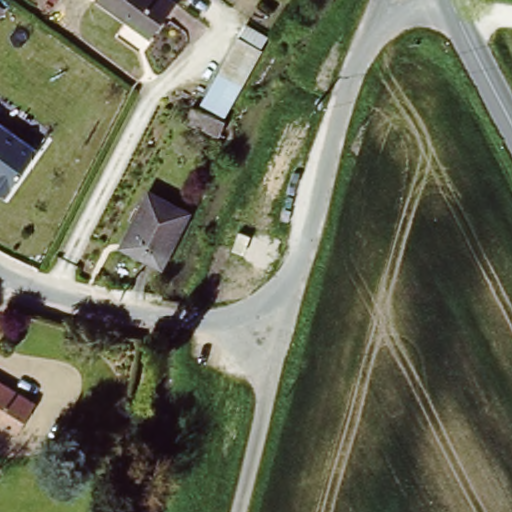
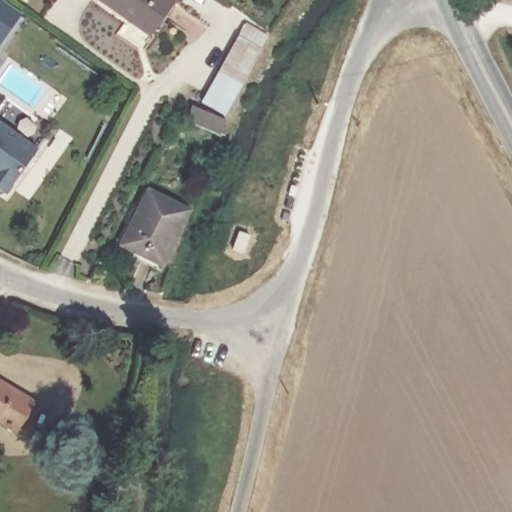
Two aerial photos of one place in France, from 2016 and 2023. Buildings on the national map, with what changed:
new [(3,0),(23,15),(0,47),(0,0),(3,0)]
unchanged [(110,4),(106,0),(178,0),(157,32),(110,4)]
unchanged [(271,34),(219,135),(176,116),(179,95),(197,100),(248,20),(271,34)]
unchanged [(38,148),(6,194),(0,189),(0,120),(38,148)]
unchanged [(118,240),(148,186),(188,206),(171,240),(165,237),(153,256),(118,240)]
unchanged [(41,409),(20,437),(0,423),(0,380),(41,409)]

